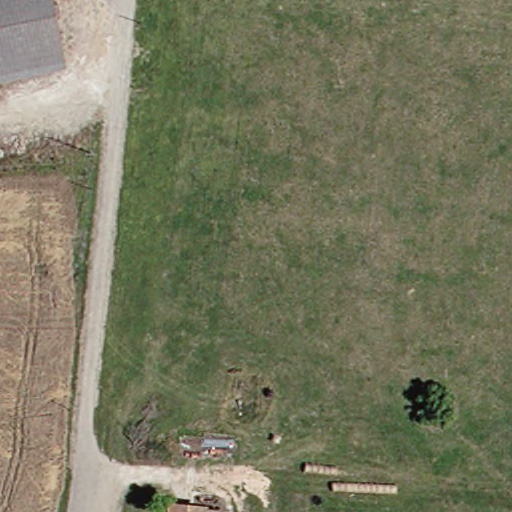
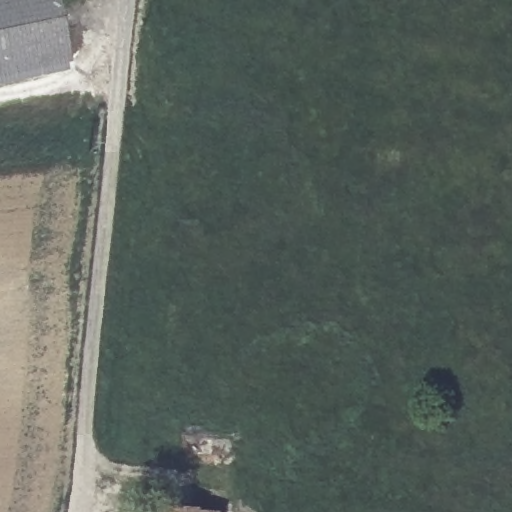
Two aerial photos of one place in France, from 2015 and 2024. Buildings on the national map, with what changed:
unchanged [(74,59),(0,76),(0,0),(60,0),(74,59)]
unchanged [(205,504),(204,512),(171,512),(173,501),(205,504)]
unchanged [(223,512),(204,512),(205,504),(224,507),(223,512)]

